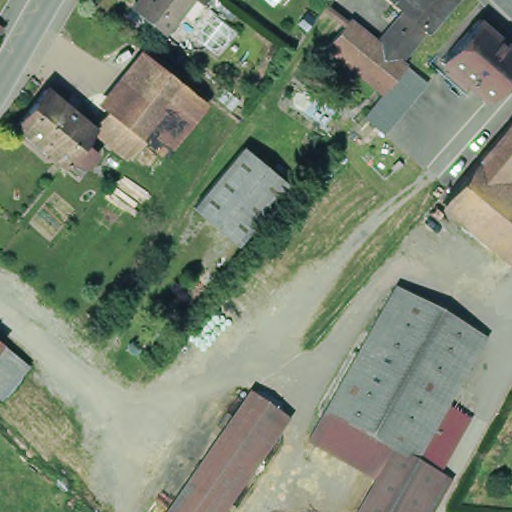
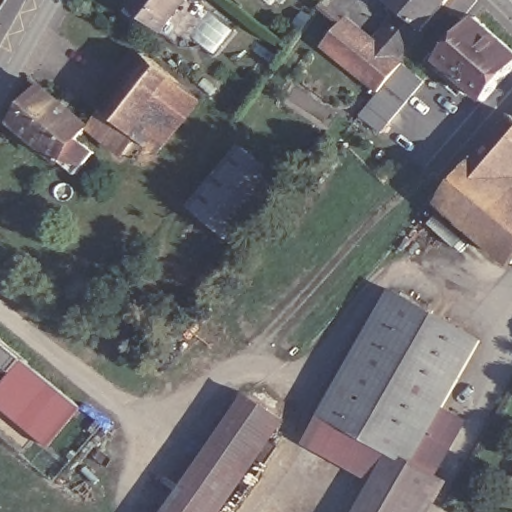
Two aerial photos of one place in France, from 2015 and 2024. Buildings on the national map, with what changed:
unchanged [(130,8),(136,0),(187,0),(162,33),(130,8)]
unchanged [(441,6),(421,29),(401,11),(390,1),(391,0),(447,0),(441,6)]
unchanged [(401,11),(421,29),(397,58),(376,41),(401,11)]
unchanged [(322,46),(346,17),(376,41),(397,58),(403,63),(379,93),(322,46)]
unchanged [(431,67),(473,17),(512,50),(512,66),(484,99),(445,68),(440,74),(431,67)]
unchanged [(105,101),(130,68),(110,52),(124,34),(145,50),(203,96),(164,147),(145,131),(130,150),(100,126),(114,108),(105,101)]
unchanged [(360,115),(379,93),(403,63),(425,81),(381,133),(360,115)]
unchanged [(17,118),(47,81),(95,120),(83,134),(100,147),(81,170),(17,118)]
unchanged [(507,121),(512,125),(512,162),(493,185),(512,200),(512,268),(510,270),(435,208),(507,121)]
unchanged [(284,182),(236,240),(192,204),(240,146),(284,182)]
unchanged [(301,444),(391,290),(485,338),(445,409),(465,421),(442,471),(448,475),(428,512),(357,512),(372,486),(301,444)]
new [(0,407),(0,389),(23,360),(80,408),(49,447),(0,407)]
unchanged [(164,512),(246,393),(287,421),(224,512),(164,512)]

